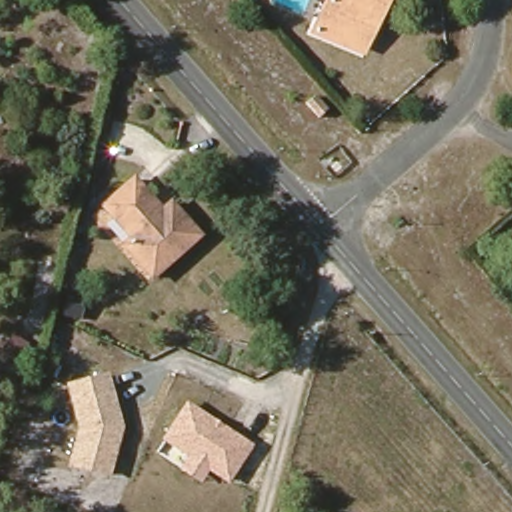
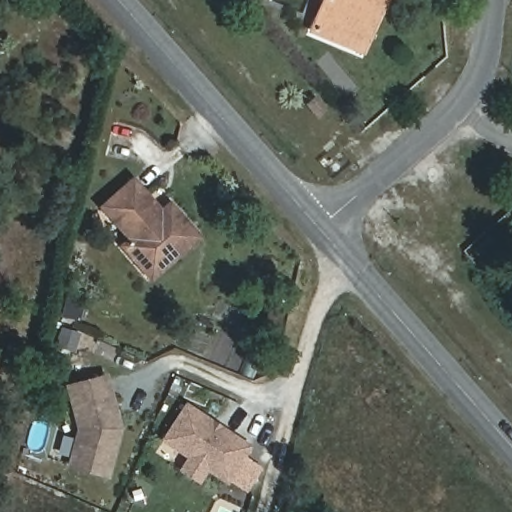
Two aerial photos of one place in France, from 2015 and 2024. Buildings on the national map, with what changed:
unchanged [(362,55),(312,35),(327,0),(384,0),(380,9),(362,55)]
unchanged [(203,235),(156,278),(127,245),(135,239),(107,206),(137,180),(152,196),(166,211),(175,203),(203,235)]
unchanged [(122,428),(109,479),(68,466),(78,428),(66,384),(107,373),(122,428)]
unchanged [(227,485),(206,471),(199,483),(176,468),(184,456),(161,441),(186,402),(252,444),(227,485)]

